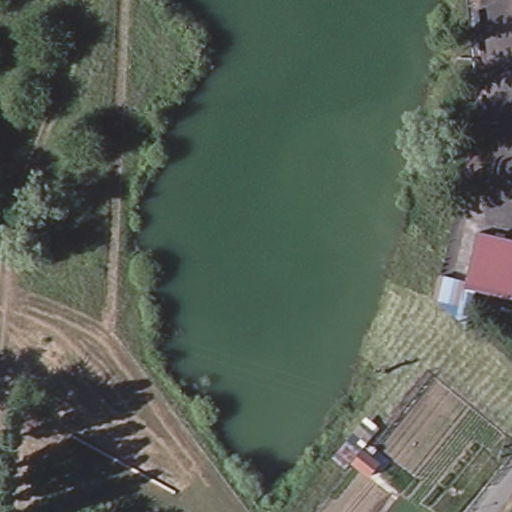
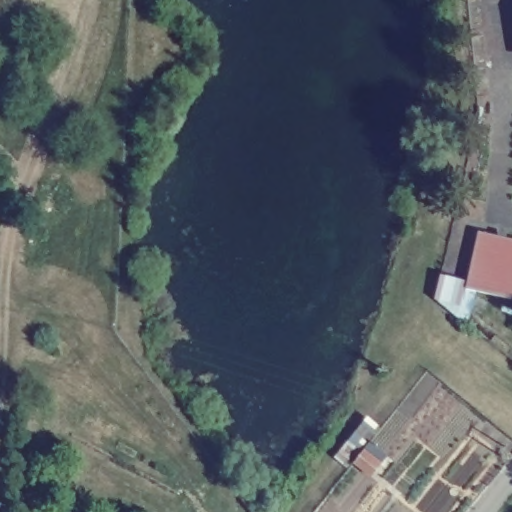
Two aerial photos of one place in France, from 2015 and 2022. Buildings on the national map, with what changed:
unchanged [(465,291),(476,238),(512,243),(512,275),(507,299),(465,291)]

